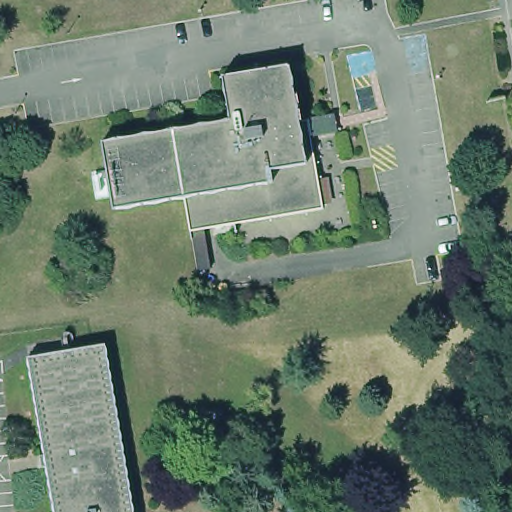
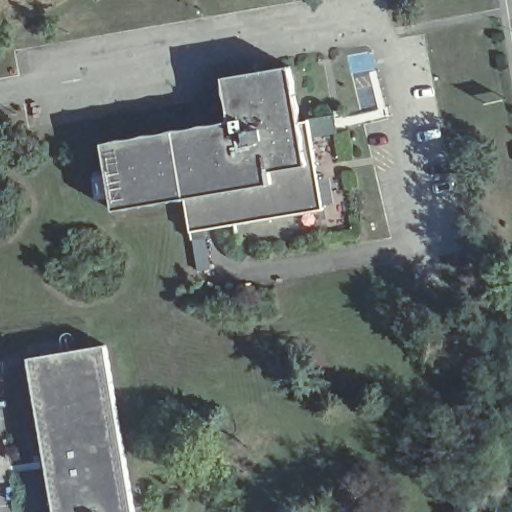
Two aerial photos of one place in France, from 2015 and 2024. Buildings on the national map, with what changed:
unchanged [(231,120),(224,75),(292,64),(300,117),(231,120)]
unchanged [(188,215),(185,195),(113,206),(102,140),(231,120),(300,117),(301,119),(309,119),(323,208),(302,212),(190,229),(188,215)]
unchanged [(28,353),(105,342),(133,512),(54,512),(28,353)]

